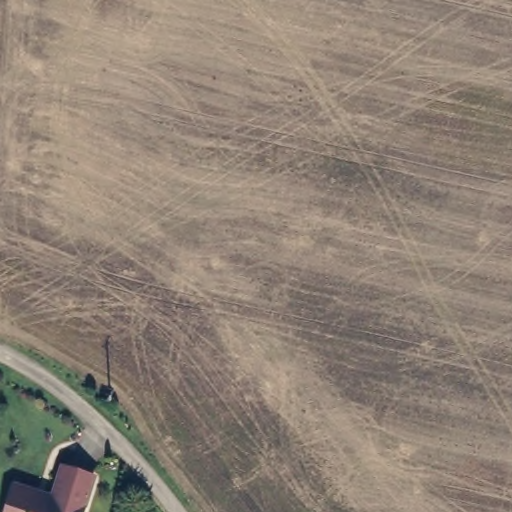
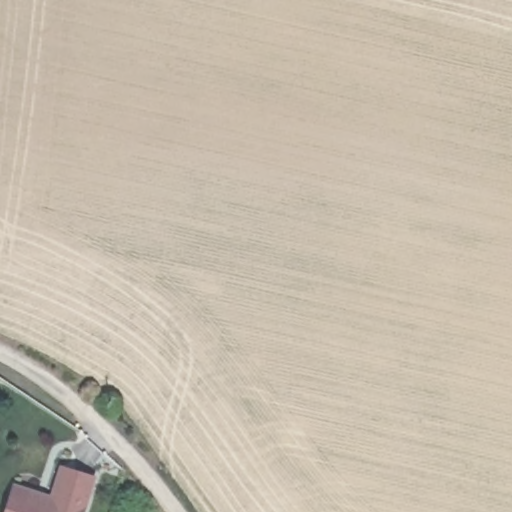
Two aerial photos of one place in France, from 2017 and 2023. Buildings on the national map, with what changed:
unchanged [(53,495),(62,466),(95,477),(84,512),(3,512),(15,483),(53,495)]

